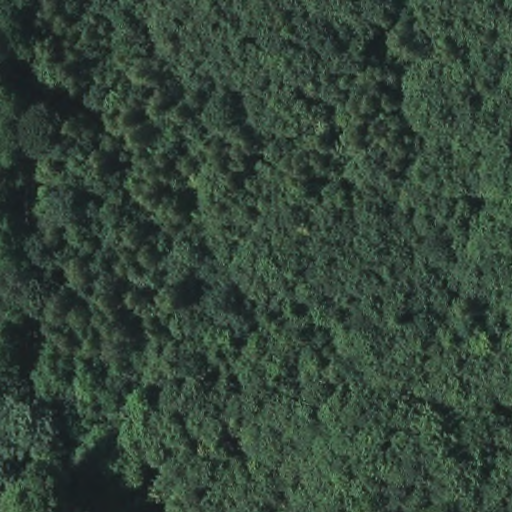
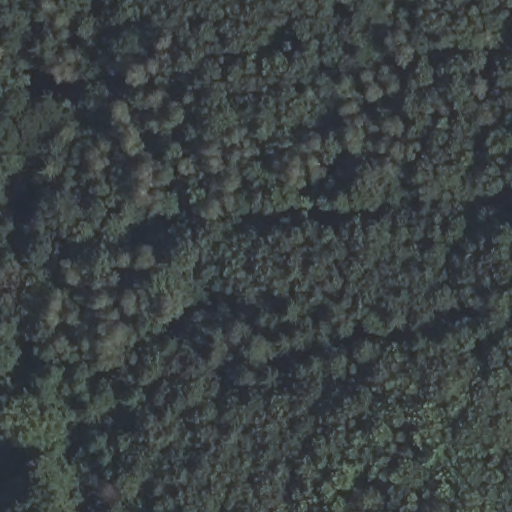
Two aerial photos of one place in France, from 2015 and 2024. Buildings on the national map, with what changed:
[]

